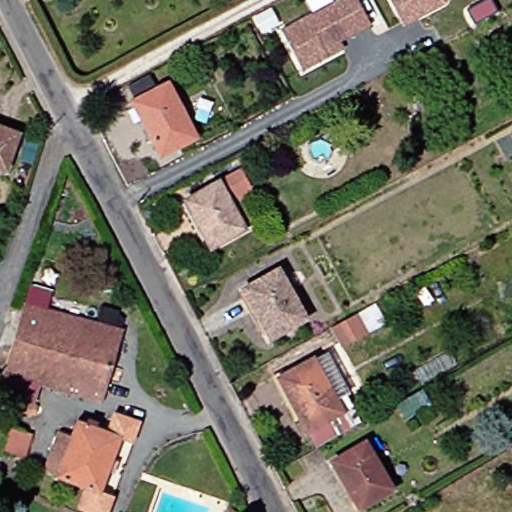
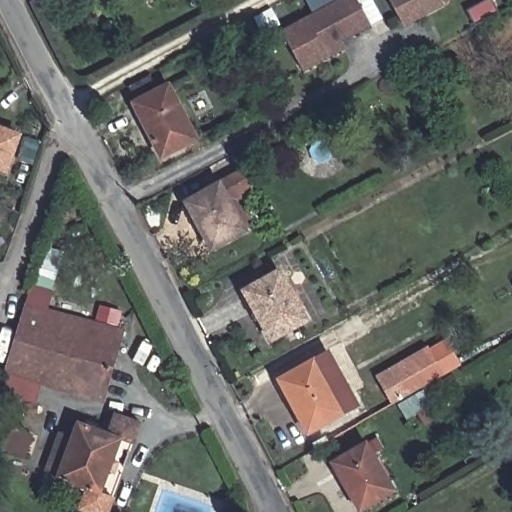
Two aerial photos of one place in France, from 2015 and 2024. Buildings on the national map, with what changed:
unchanged [(335,45),(339,52),(299,74),(277,33),(308,16),(301,3),(307,0),(328,0),(330,5),(338,0),(351,0),(366,28),(335,45)]
unchanged [(394,19),(384,0),(444,0),(440,6),(415,20),(399,28),(394,19)]
unchanged [(201,140),(168,158),(140,106),(174,88),(201,140)]
unchanged [(7,170),(0,167),(0,128),(19,135),(7,170)]
unchanged [(247,234),(214,251),(188,203),(242,174),(255,198),(243,205),(255,229),(247,234)]
unchanged [(308,317),(272,336),(247,287),(282,268),(308,317)]
unchanged [(44,308),(67,316),(71,301),(127,319),(101,402),(40,384),(34,402),(0,392),(32,290),(48,295),(44,308)]
unchanged [(364,333),(339,347),(331,331),(356,317),(364,333)]
new [(403,420),(377,375),(444,336),(460,366),(425,391),(432,403),(403,420)]
unchanged [(309,428),(282,376),(316,358),(343,410),(309,428)]
unchanged [(46,469),(59,432),(72,436),(78,421),(108,431),(115,413),(141,422),(134,442),(123,438),(102,494),(113,498),(108,512),(91,512),(80,508),(86,488),(57,477),(58,474),(46,469)]
unchanged [(24,456),(4,449),(11,429),(31,437),(24,456)]
unchanged [(394,492),(360,510),(335,464),(369,446),(394,492)]
unchanged [(227,512),(228,510),(234,512),(227,512)]

